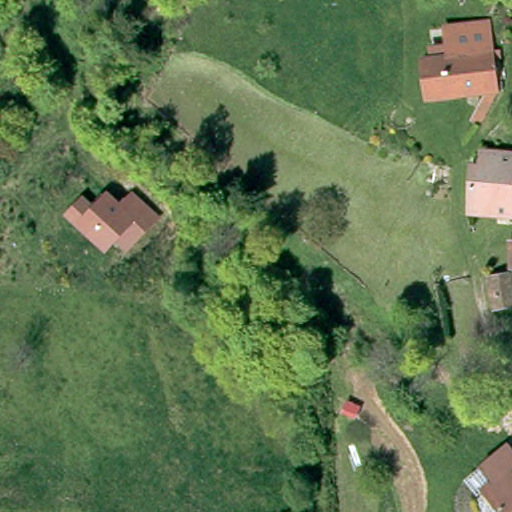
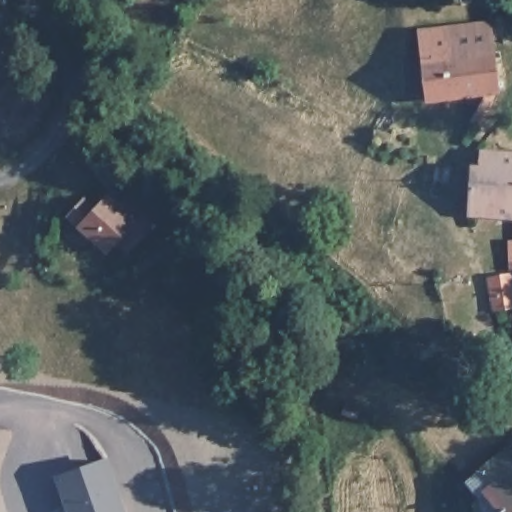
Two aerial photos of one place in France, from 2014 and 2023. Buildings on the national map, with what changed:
unchanged [(474,129),(487,100),(430,111),(424,67),(455,62),(452,39),(491,32),(500,97),(484,134),(474,129)]
unchanged [(490,159),(512,159),(512,220),(477,220),(479,174),(490,159)]
unchanged [(457,167),(456,190),(444,190),(444,165),(457,167)]
unchanged [(104,204),(110,195),(122,205),(139,185),(169,207),(150,233),(140,226),(115,256),(69,218),(86,196),(104,204)]
unchanged [(511,286),(512,254),(512,285),(511,286)]
unchanged [(497,325),(490,293),(511,286),(512,290),(512,320),(497,325)]
new [(126,512),(68,512),(55,475),(108,456),(126,512)]
unchanged [(504,484),(494,469),(512,456),(512,512),(506,512),(492,492),(504,484)]

